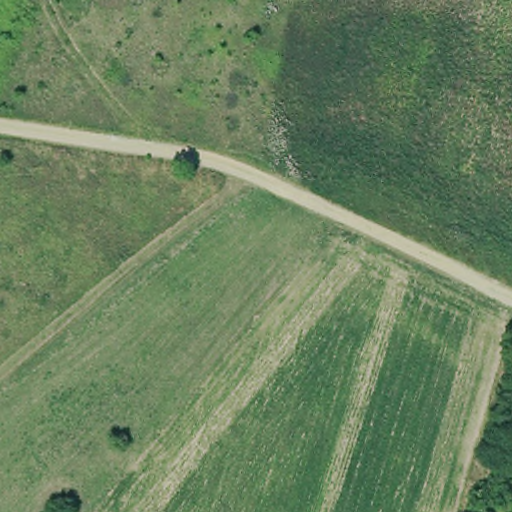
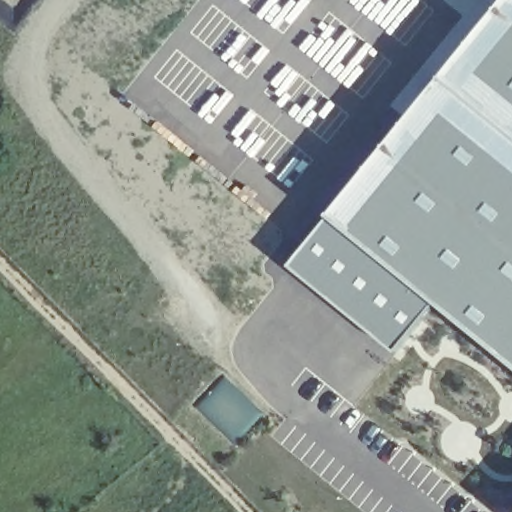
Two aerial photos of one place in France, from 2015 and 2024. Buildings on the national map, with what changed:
new [(305,251),(498,0),(512,0),(512,408),(305,251)]

